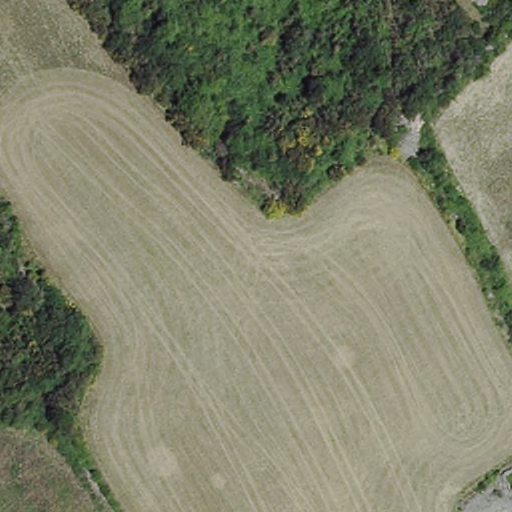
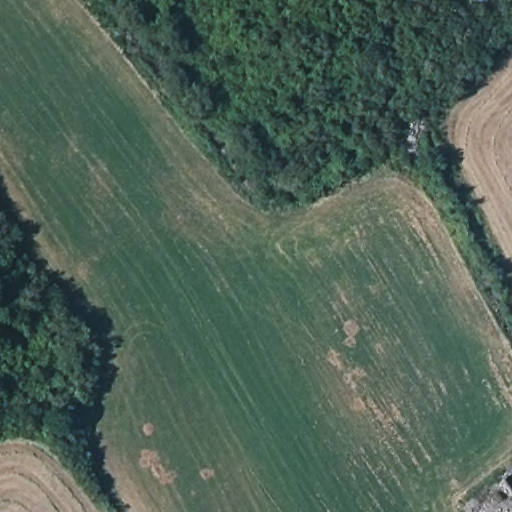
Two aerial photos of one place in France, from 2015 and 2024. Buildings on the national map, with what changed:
unchanged [(512,464),(512,481),(505,469),(512,464)]

